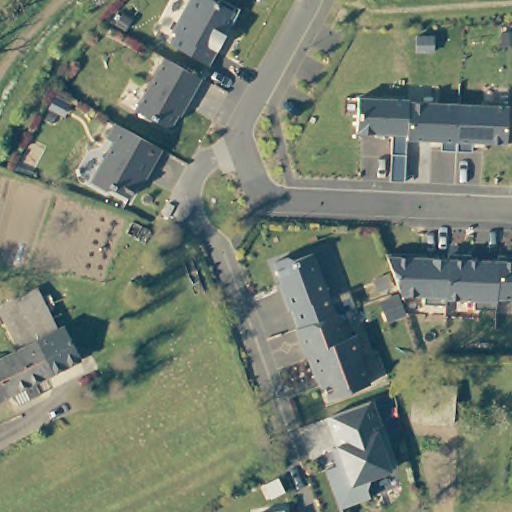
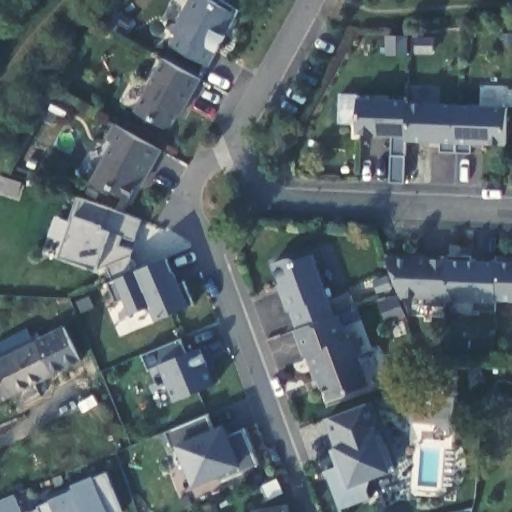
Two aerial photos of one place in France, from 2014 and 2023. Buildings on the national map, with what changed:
unchanged [(173,32),(190,0),(213,0),(218,2),(219,0),(224,0),(240,9),(209,65),(171,44),(177,34),(173,32)]
unchanged [(183,108),(181,107),(170,126),(164,128),(134,111),(163,59),(199,79),(183,108)]
unchanged [(357,98),(407,100),(403,182),(389,182),(391,134),(356,133),(357,98)]
unchanged [(407,102),(508,105),(507,143),(472,142),(472,151),(440,150),(441,141),(405,139),(407,102)]
unchanged [(160,150),(144,179),(140,176),(127,199),(109,189),(104,191),(89,183),(111,143),(105,139),(113,124),(160,150)]
new [(97,269),(60,256),(75,216),(78,197),(141,219),(135,239),(123,235),(117,245),(133,251),(130,256),(140,268),(118,277),(97,269)]
unchanged [(420,255),(420,258),(447,259),(446,284),(446,289),(445,300),(445,306),(422,305),(422,298),(400,297),(384,253),(420,255)]
unchanged [(287,258),(293,261),(311,254),(334,315),(333,315),(317,321),(301,327),(296,328),(289,310),(287,311),(281,294),(283,293),(272,263),(287,258)]
unchanged [(447,254),(470,255),(470,260),(497,261),(496,286),(495,311),(472,310),(473,301),(445,300),(446,289),(446,284),(447,259),(447,254)]
new [(189,307),(158,320),(153,306),(133,315),(126,298),(116,302),(108,281),(168,258),(189,307)]
unchanged [(512,262),(512,301),(495,300),(496,286),(497,261),(512,262)]
unchanged [(294,329),(296,328),(301,327),(317,321),(333,315),(334,315),(337,314),(346,339),(355,335),(362,352),(359,359),(368,385),(328,400),(320,378),(315,380),(306,355),(304,356),(294,329)]
unchanged [(15,393),(9,396),(0,378),(0,362),(23,349),(60,329),(66,326),(82,360),(36,382),(45,397),(24,408),(15,393)]
new [(175,402),(160,366),(150,370),(143,354),(182,338),(188,352),(202,347),(218,384),(175,402)]
unchanged [(0,378),(9,396),(0,400),(0,378)]
unchanged [(413,394),(430,395),(431,385),(456,387),(453,425),(412,422),(413,394)]
unchanged [(370,402),(381,432),(375,434),(379,445),(385,443),(394,468),(370,477),(367,490),(370,498),(339,509),(325,470),(336,466),(334,461),(341,459),(326,418),(370,402)]
new [(208,413),(215,430),(223,426),(227,434),(244,427),(259,463),(220,479),(217,473),(195,483),(180,445),(173,448),(165,430),(208,413)]
new [(39,506),(51,502),(50,499),(74,489),(71,484),(94,475),(95,477),(106,472),(122,512),(41,512),(39,506)]
new [(22,512),(0,512),(0,500),(14,494),(22,512)]
unchanged [(285,512),(265,512),(284,507),(285,512)]

